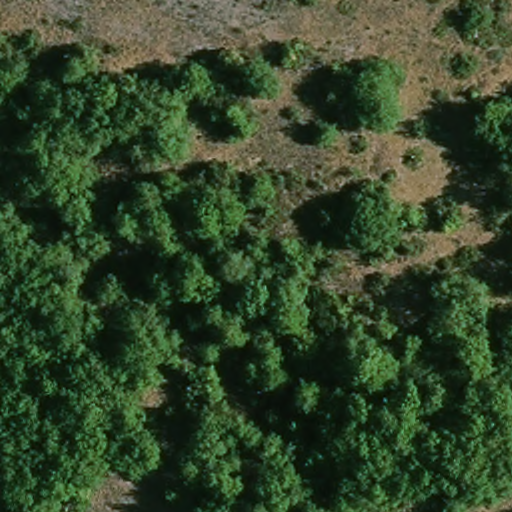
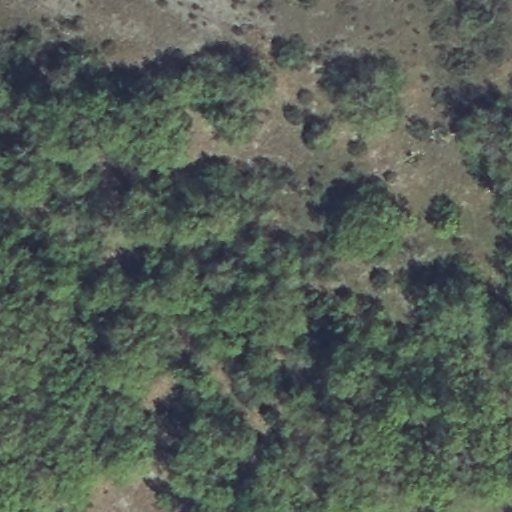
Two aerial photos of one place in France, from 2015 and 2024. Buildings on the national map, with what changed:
unchanged [(411,448),(406,427),(427,423),(431,444),(411,448)]

